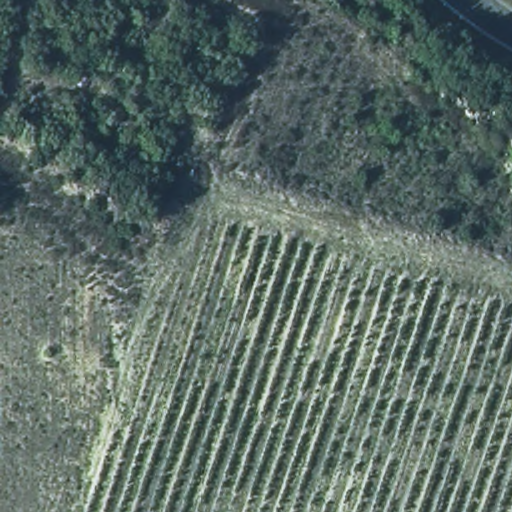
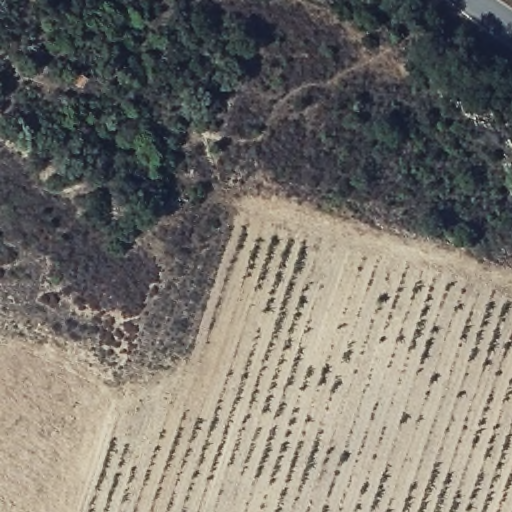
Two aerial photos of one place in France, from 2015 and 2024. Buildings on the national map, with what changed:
unchanged [(86,77),(102,84),(103,93),(85,86),(86,77)]

